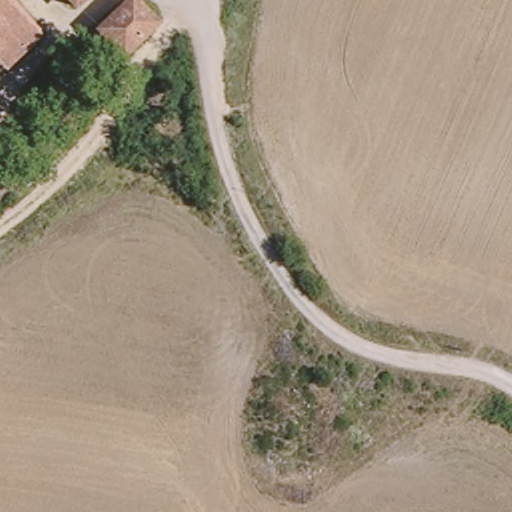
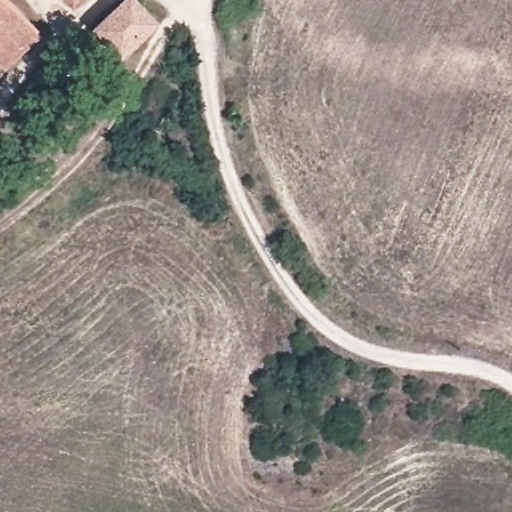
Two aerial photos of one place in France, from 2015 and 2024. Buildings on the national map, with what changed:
unchanged [(11,1),(42,35),(20,56),(0,35),(0,0),(10,0),(12,0),(11,1)]
unchanged [(74,0),(85,0),(80,5),(74,0)]
unchanged [(129,0),(153,26),(123,55),(98,30),(129,0)]
unchanged [(8,69),(0,61),(0,35),(20,56),(8,69)]
unchanged [(76,106),(84,116),(67,132),(58,124),(76,106)]
unchanged [(0,196),(0,189),(4,192),(0,196)]

